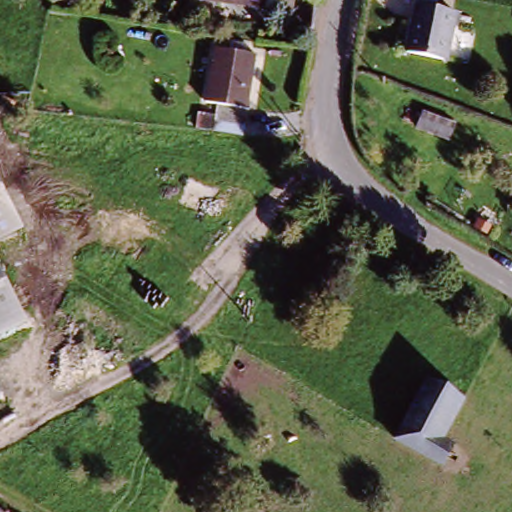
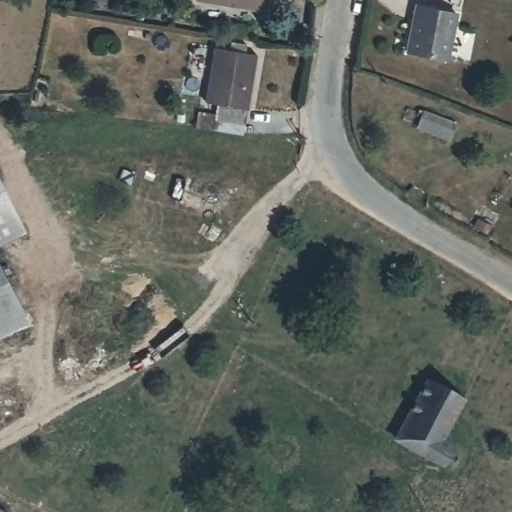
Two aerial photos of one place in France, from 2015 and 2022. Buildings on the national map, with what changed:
unchanged [(191,2),(191,0),(263,0),(260,15),(191,2)]
unchanged [(447,53),(409,44),(419,0),(423,0),(457,9),(447,53)]
unchanged [(207,129),(210,119),(212,105),(202,103),(212,49),(254,57),(242,124),(240,136),(207,129)]
unchanged [(441,126),(434,143),(404,129),(411,113),(441,126)]
unchanged [(16,250),(0,257),(0,213),(16,250)]
unchanged [(16,250),(18,249),(46,313),(0,334),(0,257),(16,250)]
unchanged [(462,400),(440,442),(449,446),(435,470),(390,444),(423,380),(430,383),(462,400)]

